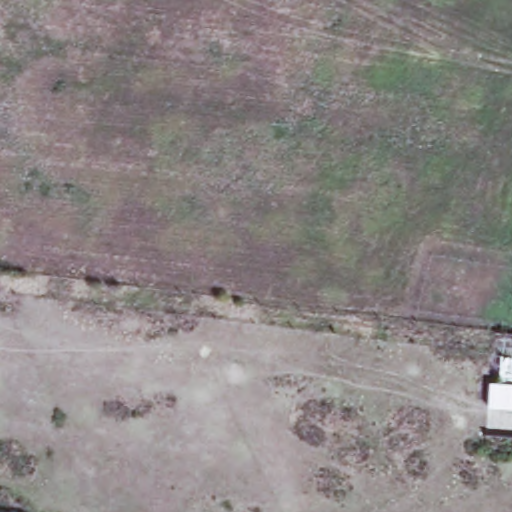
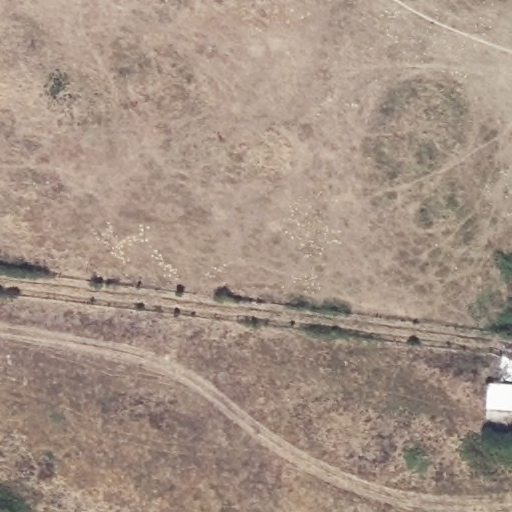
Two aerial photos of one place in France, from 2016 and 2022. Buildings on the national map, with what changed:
unchanged [(488,381),(512,383),(512,410),(486,408),(488,381)]

